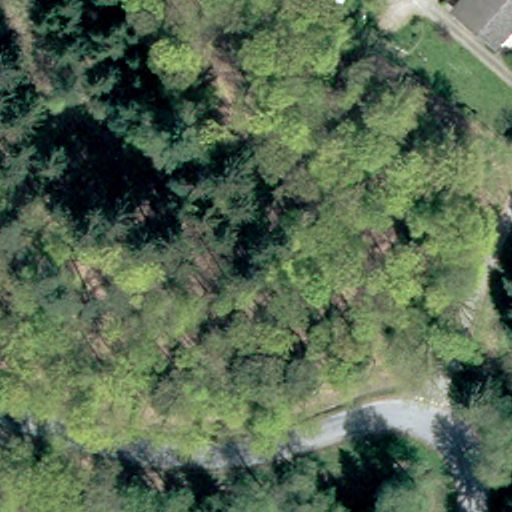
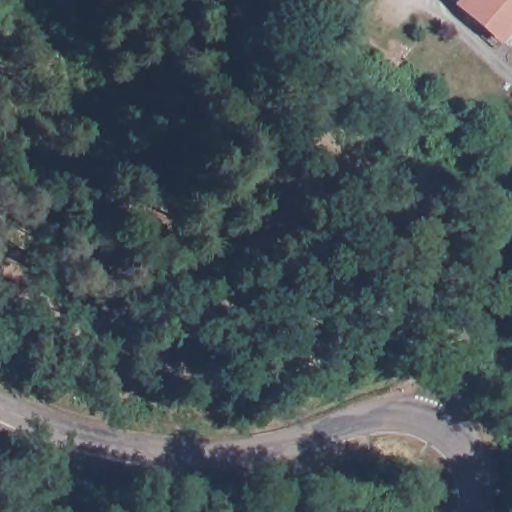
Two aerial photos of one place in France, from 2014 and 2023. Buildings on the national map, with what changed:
unchanged [(494,45),(460,8),(467,0),(512,0),(512,27),(494,45)]

